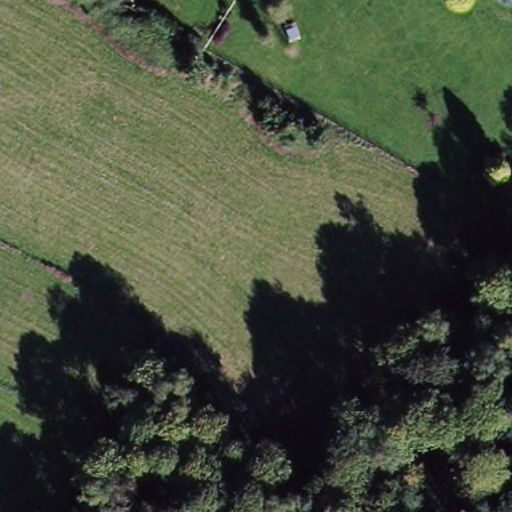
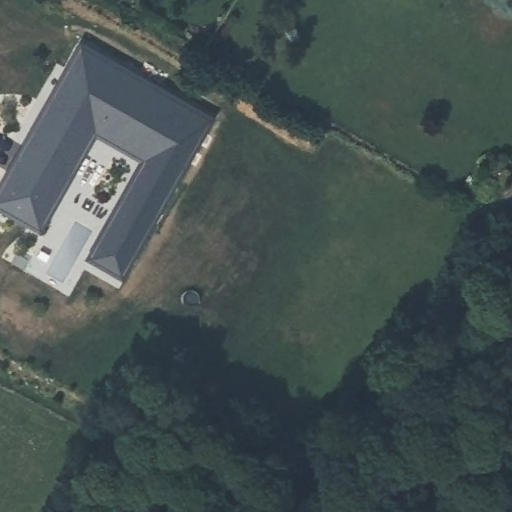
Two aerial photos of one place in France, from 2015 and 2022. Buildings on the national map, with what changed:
new [(212,118),(122,272),(92,254),(149,159),(95,127),(72,166),(61,160),(26,217),(0,202),(0,186),(29,139),(37,144),(79,74),(69,67),(82,47),(212,118)]

